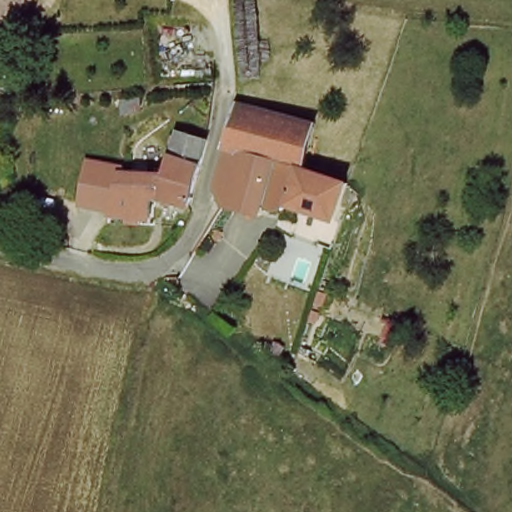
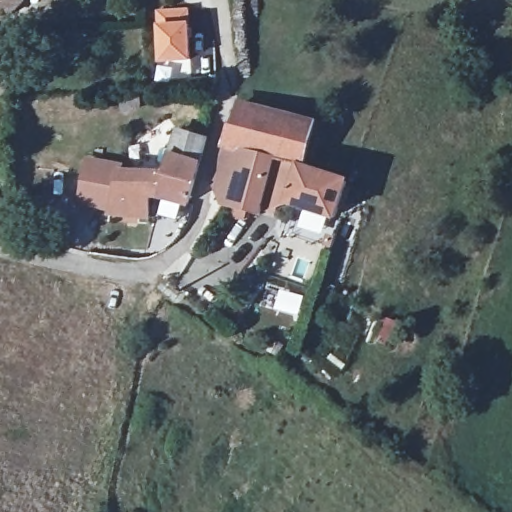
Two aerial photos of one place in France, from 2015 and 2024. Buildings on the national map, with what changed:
unchanged [(8,16),(0,17),(0,0),(21,0),(21,2),(8,16)]
new [(189,7),(192,63),(156,64),(155,9),(189,7)]
unchanged [(238,100),(317,121),(306,162),(226,141),(238,100)]
unchanged [(127,217),(111,214),(114,165),(165,165),(175,122),(201,132),(184,200),(154,187),(147,209),(144,220),(127,217)]
unchanged [(306,162),(350,175),(338,211),(290,197),(278,202),(265,199),(261,207),(227,200),(215,184),(225,145),(226,141),(306,162)]
unchanged [(75,206),(82,159),(114,165),(111,214),(75,206)]

